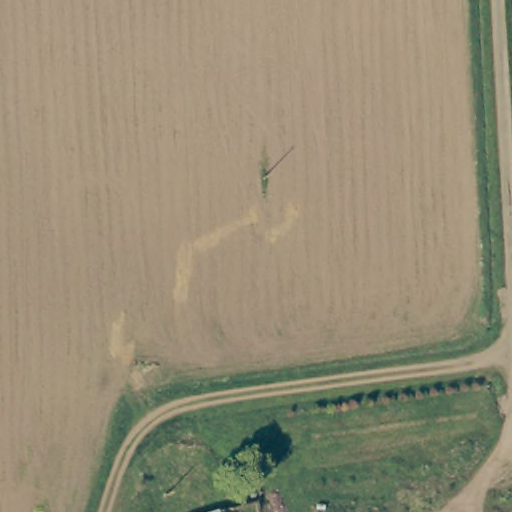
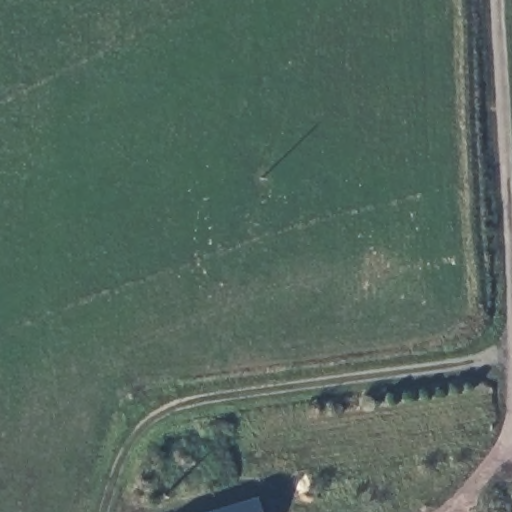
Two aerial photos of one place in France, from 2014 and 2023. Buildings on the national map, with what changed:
new [(255,501),(258,512),(221,512),(255,501)]
demolished [(223,507),(224,512),(208,512),(223,507)]

